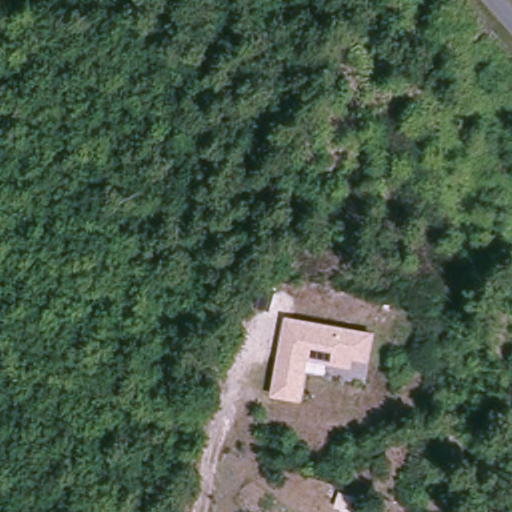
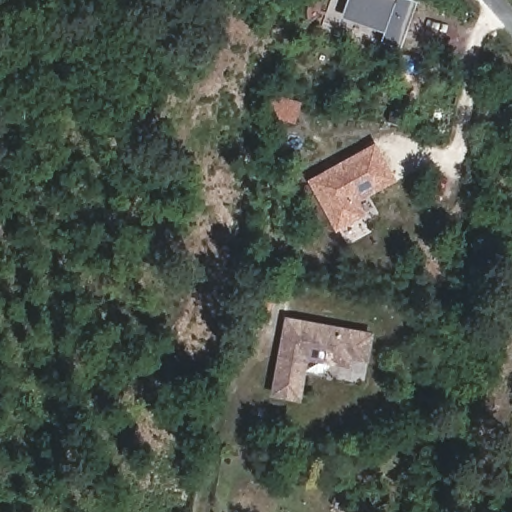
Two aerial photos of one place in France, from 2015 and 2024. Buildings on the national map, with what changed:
new [(401,47),(382,40),(384,32),(342,18),(349,0),(413,0),(417,1),(401,47)]
new [(361,203),(369,216),(334,234),(309,180),(376,142),(397,181),(361,203)]
unchanged [(371,363),(352,359),(351,368),(309,360),(302,401),(271,397),(287,315),(376,331),(371,363)]

